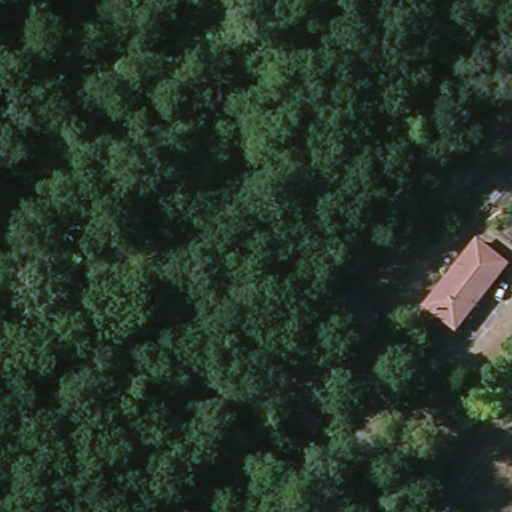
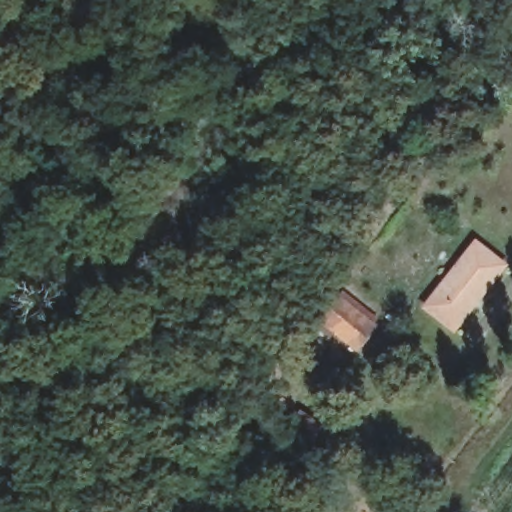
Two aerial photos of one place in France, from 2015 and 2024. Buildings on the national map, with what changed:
unchanged [(505,265),(457,330),(425,305),(476,242),(505,265)]
unchanged [(356,354),(321,320),(344,292),(384,320),(356,354)]

